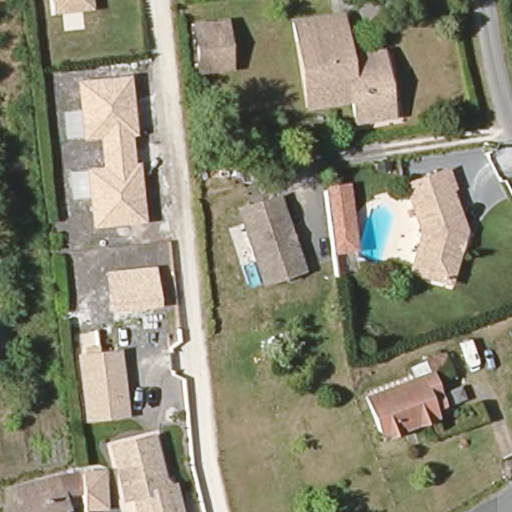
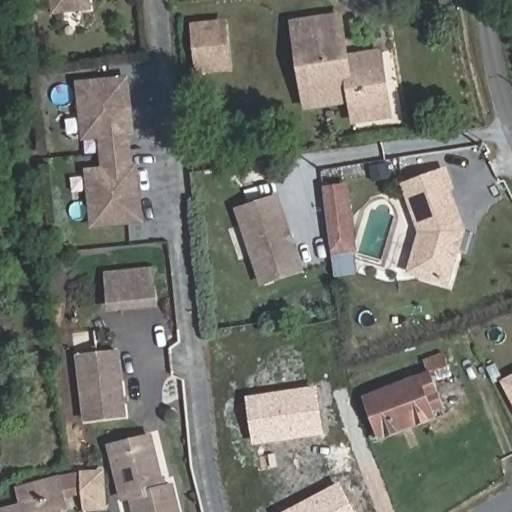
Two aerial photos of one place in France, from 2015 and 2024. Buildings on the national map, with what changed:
unchanged [(92,11),(55,15),(54,0),(91,0),(92,11)]
unchanged [(195,25),(223,23),(227,66),(199,69),(195,25)]
unchanged [(308,95),(300,32),(335,27),(338,52),(385,46),(392,107),(395,126),(347,132),(342,91),(308,95)]
unchanged [(131,138),(127,139),(130,163),(135,163),(141,223),(87,229),(80,169),(96,167),(95,140),(79,142),(74,79),(127,72),(131,138)]
unchanged [(443,169),(450,186),(447,187),(464,230),(451,278),(406,266),(415,231),(400,184),(443,169)]
unchanged [(353,251),(332,254),(323,187),(345,184),(353,251)]
unchanged [(262,283),(240,209),(280,198),(302,271),(262,283)]
unchanged [(156,306),(102,312),(99,273),(151,266),(156,306)]
unchanged [(119,411),(86,415),(78,350),(118,346),(125,402),(125,410),(119,411)]
unchanged [(435,411),(437,415),(382,436),(367,397),(448,365),(452,375),(435,382),(438,391),(445,407),(435,411)]
new [(512,377),(512,391),(506,380),(512,377)]
new [(245,397),(317,386),(324,435),(253,445),(245,397)]
unchanged [(120,501),(106,449),(146,439),(160,490),(168,488),(174,512),(132,512),(129,499),(120,501)]
unchanged [(102,490),(64,495),(66,502),(59,504),(61,512),(7,512),(5,503),(19,499),(15,483),(59,472),(100,467),(102,490)]
new [(355,512),(283,512),(340,482),(355,512)]

